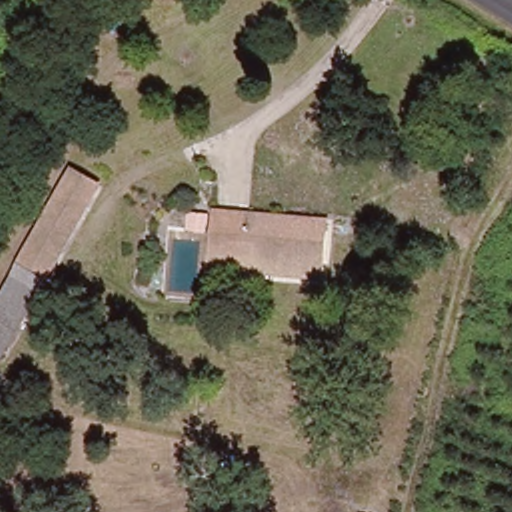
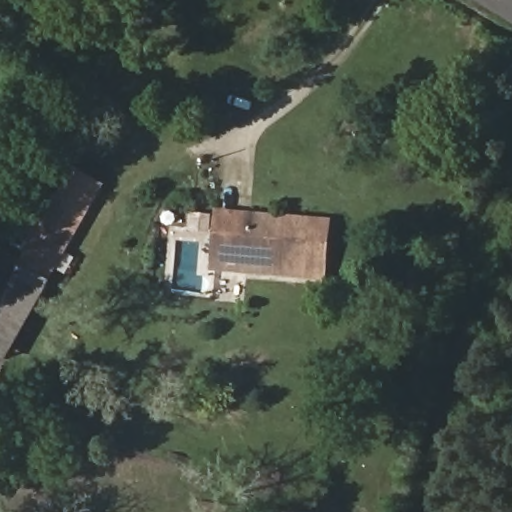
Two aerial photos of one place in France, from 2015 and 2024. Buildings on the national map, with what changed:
unchanged [(55,279),(8,361),(0,357),(0,305),(23,263),(75,164),(108,184),(55,279)]
unchanged [(220,208),(333,217),(330,280),(211,270),(220,208)]

